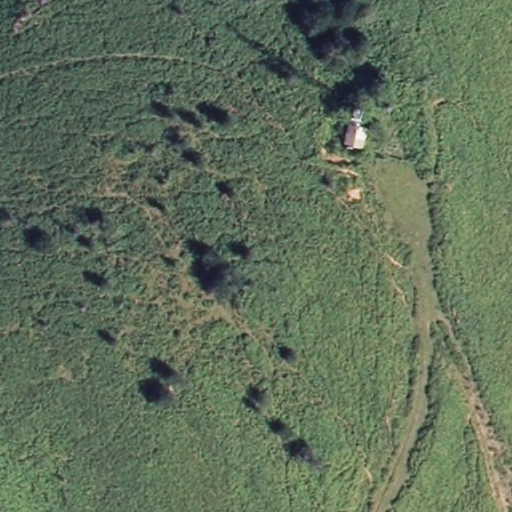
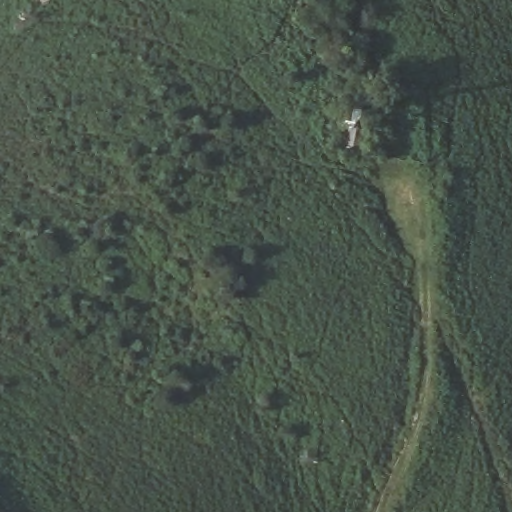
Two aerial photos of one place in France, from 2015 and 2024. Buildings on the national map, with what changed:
unchanged [(339,149),(340,121),(364,124),(363,151),(339,149)]

